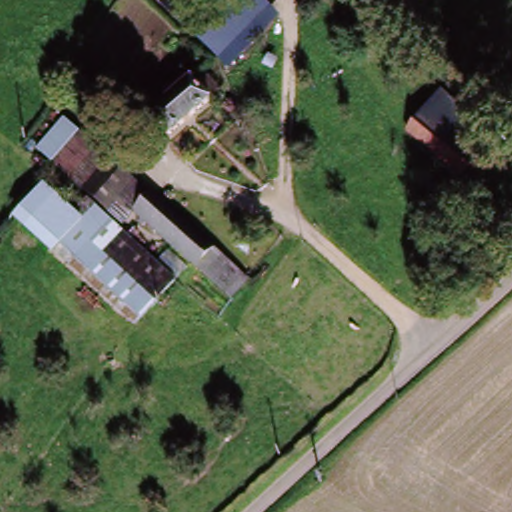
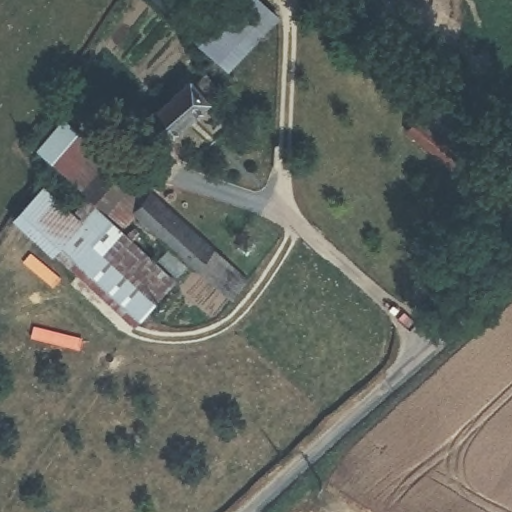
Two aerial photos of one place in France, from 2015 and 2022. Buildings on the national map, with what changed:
unchanged [(180,21),(198,0),(266,0),(278,10),(230,65),(180,21)]
unchanged [(191,81),(208,100),(166,139),(156,127),(136,145),(128,136),(191,81)]
unchanged [(454,102),(493,135),(474,156),(436,123),(454,102)]
unchanged [(128,217),(120,228),(176,280),(136,328),(18,231),(51,195),(63,200),(71,190),(34,150),(63,117),(148,191),(128,217)]
unchanged [(474,156),(459,172),(422,140),(436,123),(474,156)]
unchanged [(235,269),(211,291),(128,217),(148,191),(235,269)]

